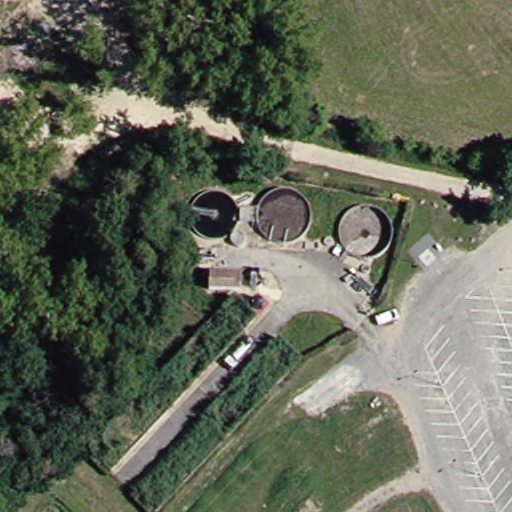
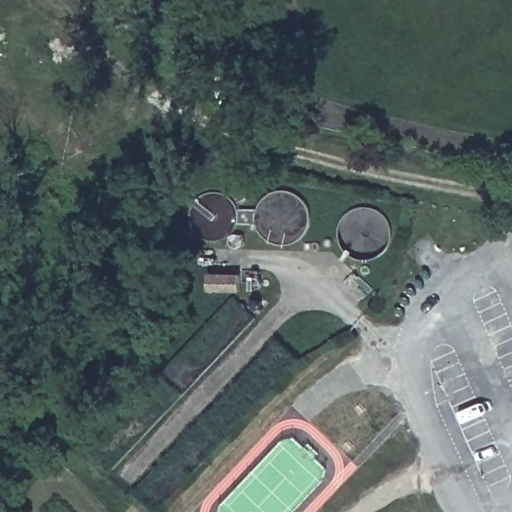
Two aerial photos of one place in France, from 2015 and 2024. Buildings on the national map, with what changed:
unchanged [(239,277),(239,296),(203,296),(203,276),(239,277)]

